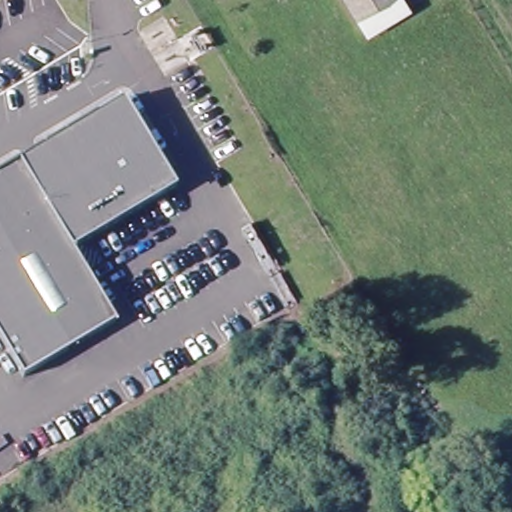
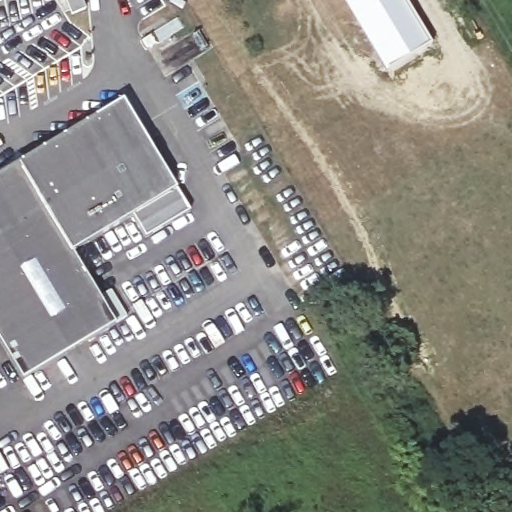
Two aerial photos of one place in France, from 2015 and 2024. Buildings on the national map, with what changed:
unchanged [(361,18),(349,0),(392,0),(361,18)]
new [(392,0),(406,0),(433,44),(387,70),(357,19),(361,18),(392,0)]
unchanged [(124,98),(177,187),(73,249),(116,321),(23,377),(0,339),(0,173),(124,98)]

